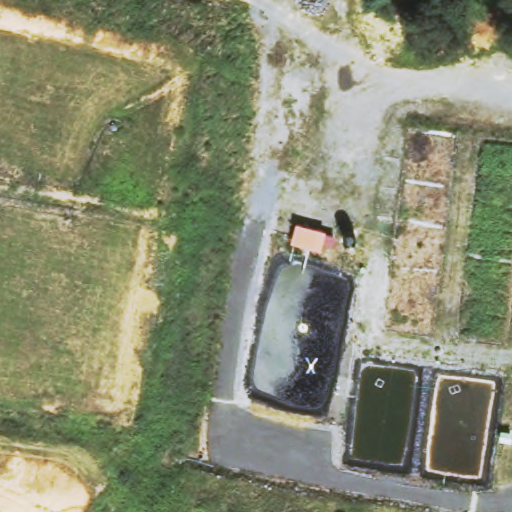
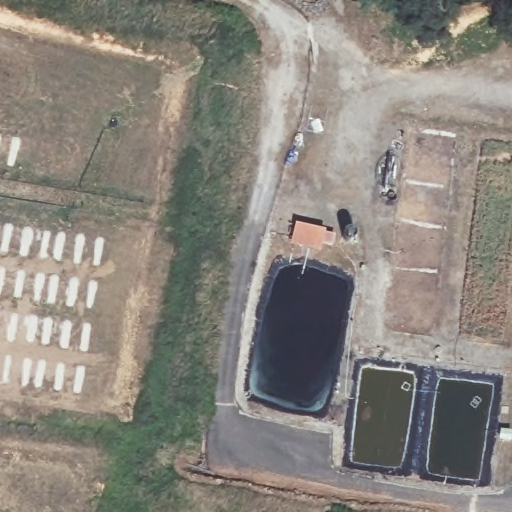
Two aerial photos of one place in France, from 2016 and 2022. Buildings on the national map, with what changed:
unchanged [(294,221),(324,229),(319,252),(290,244),(294,221)]

